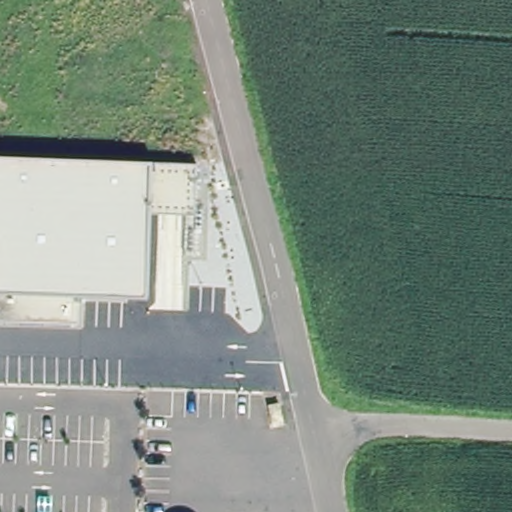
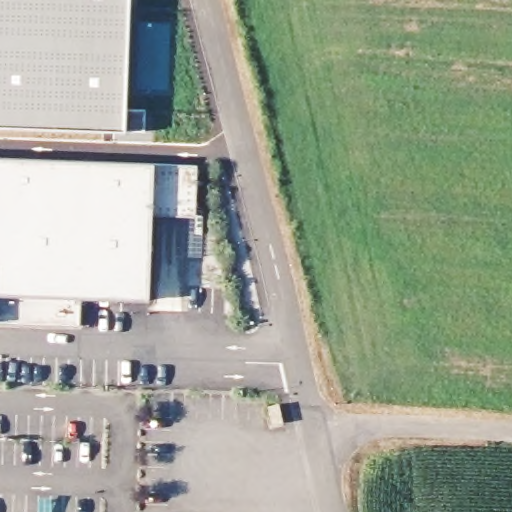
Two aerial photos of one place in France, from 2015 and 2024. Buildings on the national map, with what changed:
new [(127,108),(145,109),(144,129),(131,129),(126,131),(0,127),(0,0),(130,0),(127,108)]
unchanged [(147,300),(81,297),(80,325),(0,321),(0,157),(197,165),(195,206),(150,204),(147,300)]

